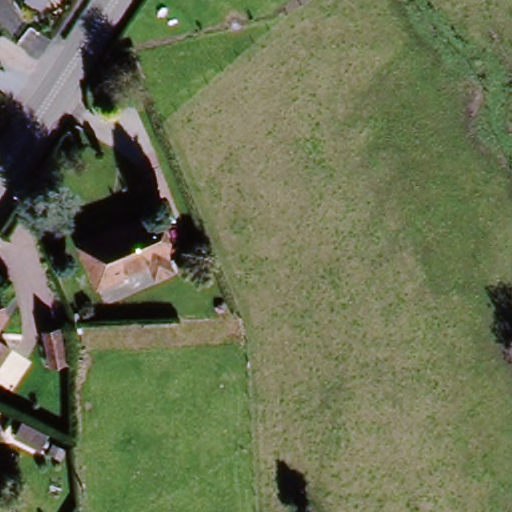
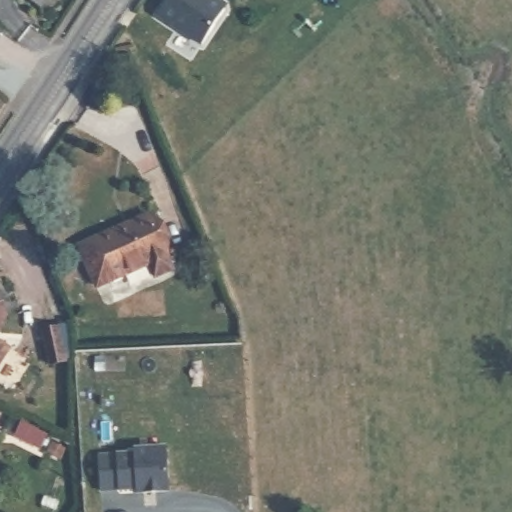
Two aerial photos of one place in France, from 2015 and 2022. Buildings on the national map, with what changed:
unchanged [(40,11),(24,0),(48,0),(40,11)]
new [(225,3),(225,8),(203,43),(159,14),(168,0),(220,0),(225,3)]
unchanged [(120,58),(115,65),(107,61),(113,51),(120,58)]
unchanged [(150,280),(142,262),(112,273),(102,278),(86,238),(96,233),(121,224),(125,226),(155,214),(170,250),(176,268),(150,280)]
unchanged [(0,319),(0,316),(1,316),(0,319)]
unchanged [(60,335),(65,368),(51,371),(45,337),(60,335)]
unchanged [(0,346),(5,349),(0,358),(0,346)]
new [(134,453),(133,449),(167,446),(171,494),(136,496),(136,491),(101,492),(100,454),(134,453)]

